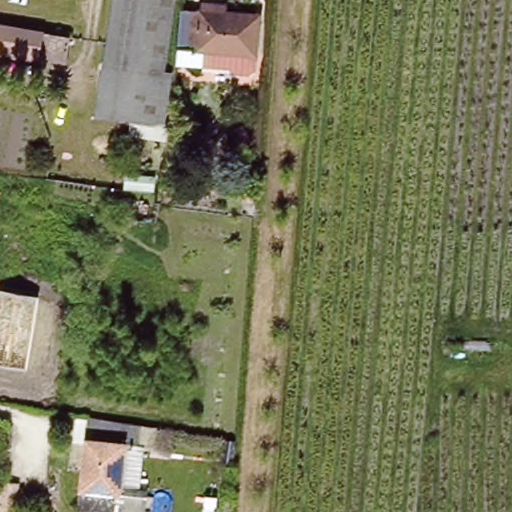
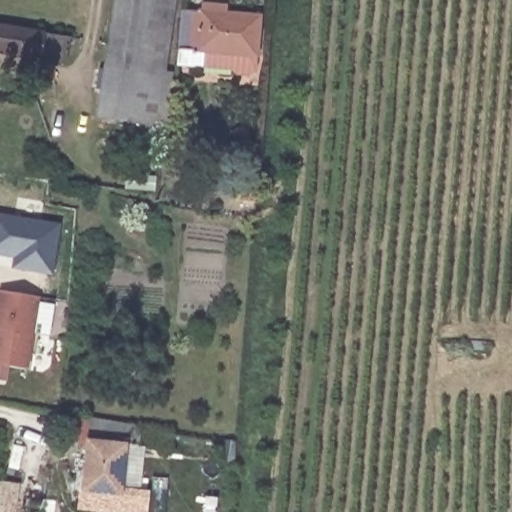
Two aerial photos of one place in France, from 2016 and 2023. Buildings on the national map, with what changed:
unchanged [(129,135),(131,123),(96,118),(113,0),(148,0),(138,71),(165,75),(171,76),(164,127),(169,128),(167,141),(129,135)]
unchanged [(165,75),(138,71),(148,0),(175,0),(165,75)]
unchanged [(175,63),(177,48),(181,7),(200,10),(201,1),(226,4),(226,12),(260,16),(256,55),(237,54),(235,69),(175,63)]
unchanged [(65,64),(0,53),(0,25),(69,36),(65,64)]
new [(12,268),(14,257),(0,255),(0,213),(61,224),(54,276),(12,268)]
unchanged [(0,290),(41,297),(27,370),(0,366),(0,290)]
unchanged [(145,491),(142,512),(129,512),(79,506),(89,416),(142,425),(140,447),(135,490),(145,491)]
unchanged [(235,464),(222,462),(226,439),(236,440),(235,464)]
new [(13,512),(0,512),(0,481),(16,483),(13,512)]

